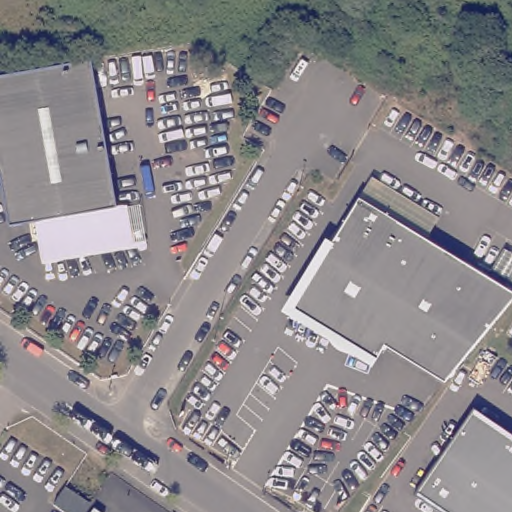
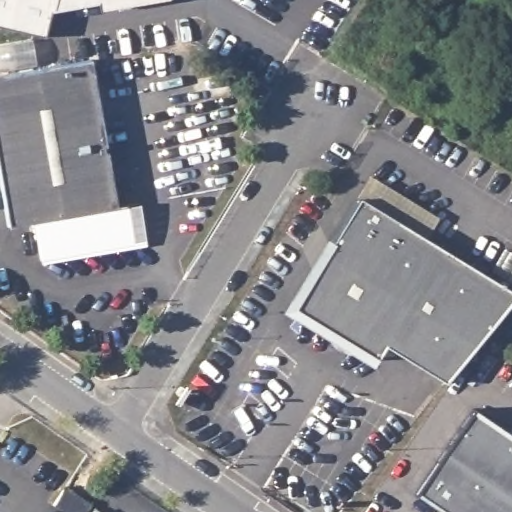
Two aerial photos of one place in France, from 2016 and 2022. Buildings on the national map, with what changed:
new [(97,2),(50,12),(43,35),(0,25),(0,0),(135,0),(99,7),(97,2)]
unchanged [(115,207),(126,205),(132,242),(41,258),(34,220),(7,225),(0,183),(0,75),(90,59),(115,207)]
unchanged [(386,347),(379,358),(295,308),(361,197),(512,288),(512,301),(447,382),(386,347)]
unchanged [(512,440),(512,512),(442,512),(416,495),(474,411),(512,440)]
unchanged [(89,505),(84,512),(63,512),(52,505),(64,488),(89,505)]

